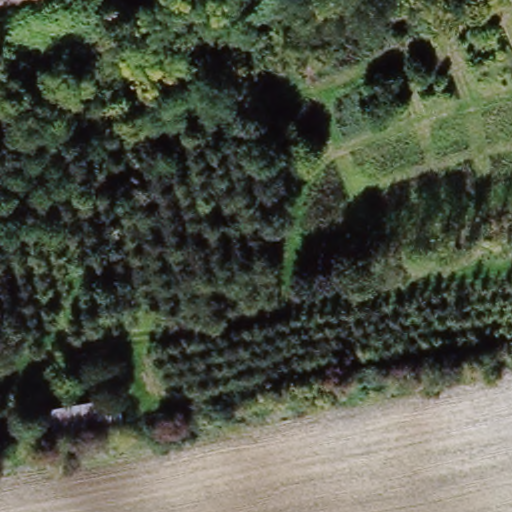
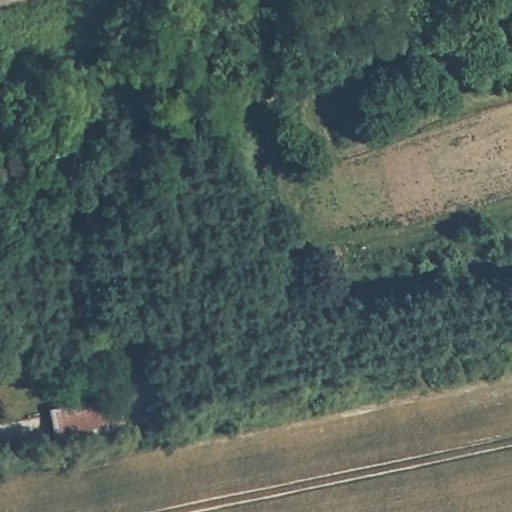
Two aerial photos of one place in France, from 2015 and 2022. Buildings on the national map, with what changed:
unchanged [(118,391),(122,424),(60,445),(55,406),(118,391)]

